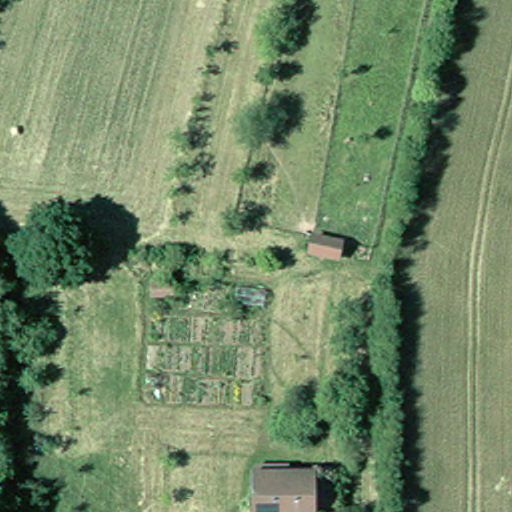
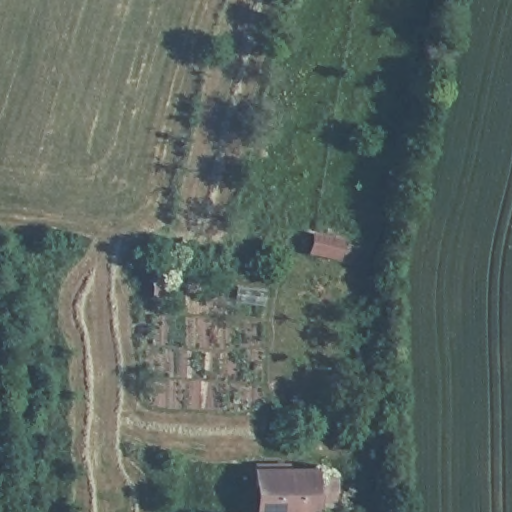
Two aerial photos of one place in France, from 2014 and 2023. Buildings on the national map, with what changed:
unchanged [(343,252),(317,246),(320,231),(347,235),(343,252)]
unchanged [(340,475),(340,506),(318,506),(318,512),(252,512),(252,503),(258,502),(258,474),(258,467),(291,466),(291,473),(317,473),(317,476),(340,475)]

